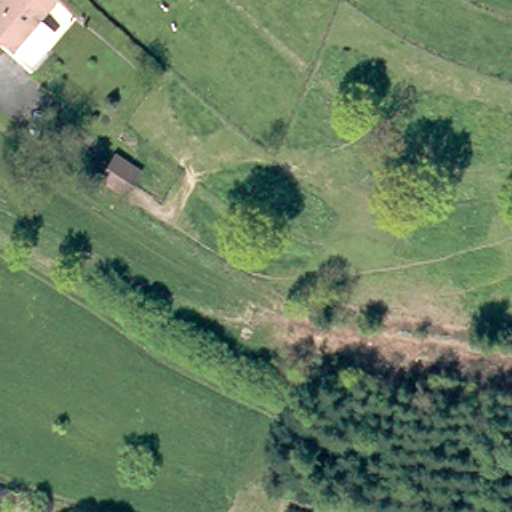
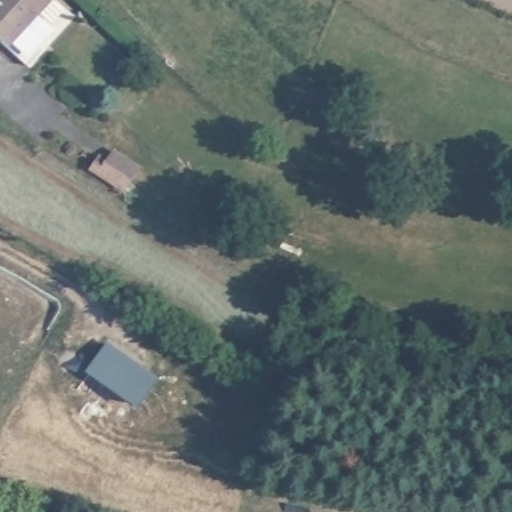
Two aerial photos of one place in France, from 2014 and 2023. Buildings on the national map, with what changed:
unchanged [(4,38),(8,34),(0,27),(0,0),(64,0),(73,8),(28,58),(4,38)]
unchanged [(138,170),(124,191),(93,171),(100,159),(109,165),(116,155),(138,170)]
new [(161,378),(139,408),(88,372),(108,341),(161,378)]

